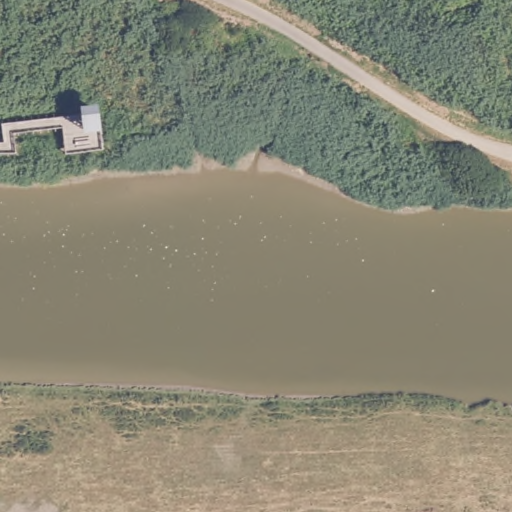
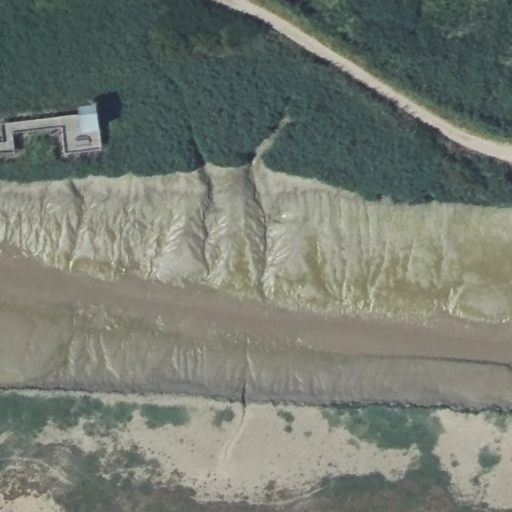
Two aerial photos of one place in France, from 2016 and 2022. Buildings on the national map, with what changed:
unchanged [(102,132),(82,134),(79,104),(100,102),(102,132)]

